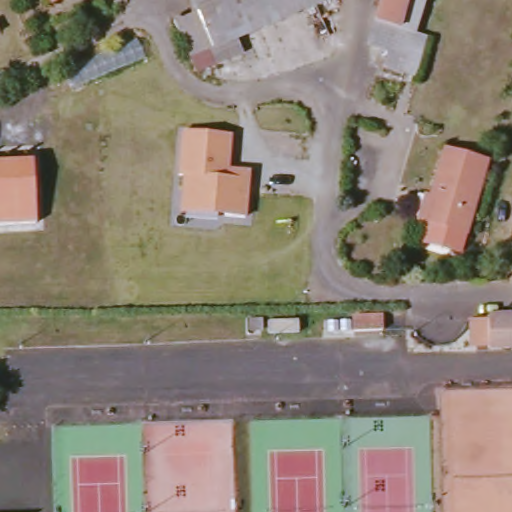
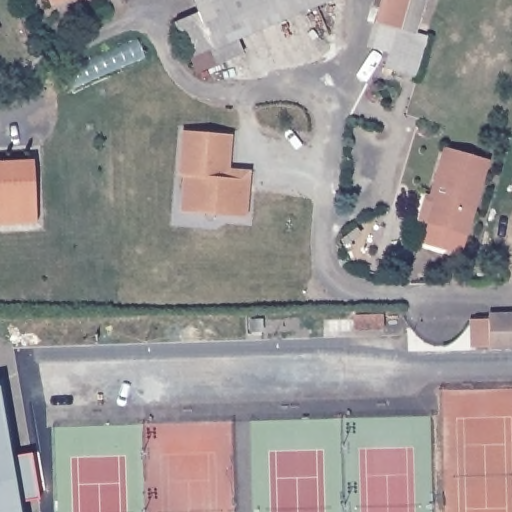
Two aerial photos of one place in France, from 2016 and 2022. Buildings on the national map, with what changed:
unchanged [(50,0),(61,0),(52,4),(50,0)]
unchanged [(172,22),(195,14),(190,0),(330,0),(331,3),(238,42),(241,58),(191,75),(172,22)]
unchanged [(403,71),(385,65),(397,28),(377,20),(383,0),(407,0),(398,25),(415,32),(403,71)]
unchanged [(430,1),(427,0),(430,0),(430,1)]
unchanged [(182,180),(176,177),(180,134),(230,139),(230,171),(249,173),(245,217),(179,211),(182,180)]
unchanged [(431,197),(435,198),(450,147),(495,161),(471,238),(432,227),(422,224),(431,197)]
unchanged [(32,161),(38,221),(0,225),(0,163),(32,161)]
unchanged [(492,316),(512,316),(512,346),(492,346),(492,316)]
unchanged [(376,341),(351,342),(350,323),(377,323),(376,341)]
new [(0,512),(0,385),(2,385),(24,512),(0,512)]

